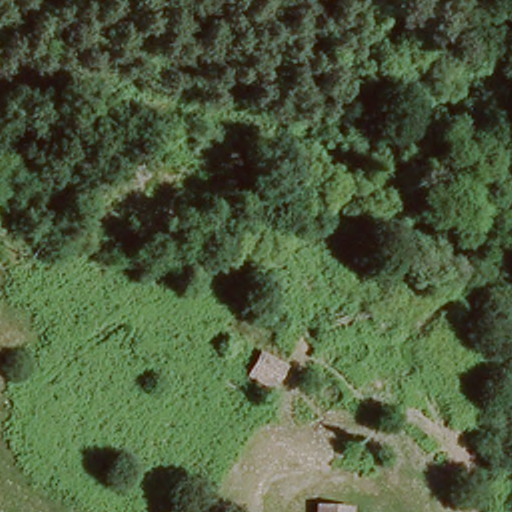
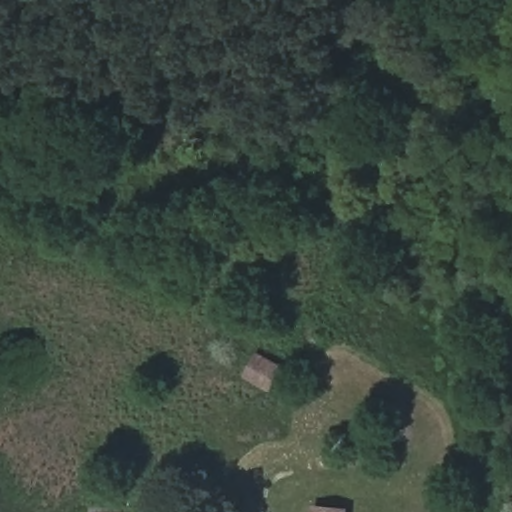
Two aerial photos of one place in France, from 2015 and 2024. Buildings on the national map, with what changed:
unchanged [(283,379),(248,368),(254,348),(289,359),(283,379)]
unchanged [(346,509),(345,512),(317,512),(317,508),(346,509)]

